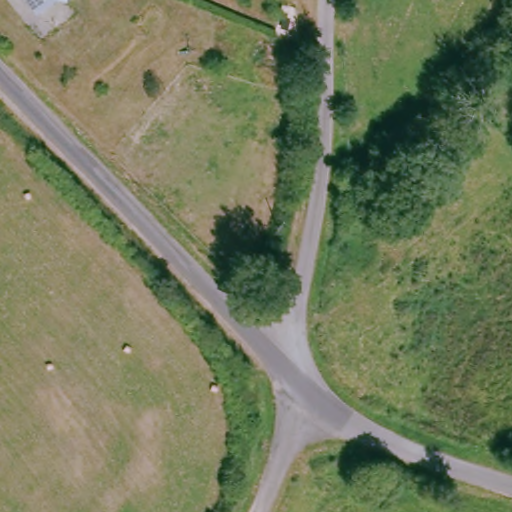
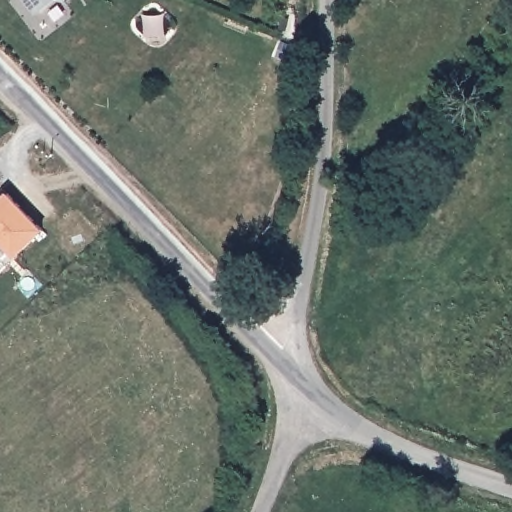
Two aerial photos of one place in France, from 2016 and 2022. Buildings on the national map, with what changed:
unchanged [(39,5),(35,0),(47,0),(39,5)]
new [(18,256),(0,239),(0,201),(9,192),(45,230),(18,256)]

